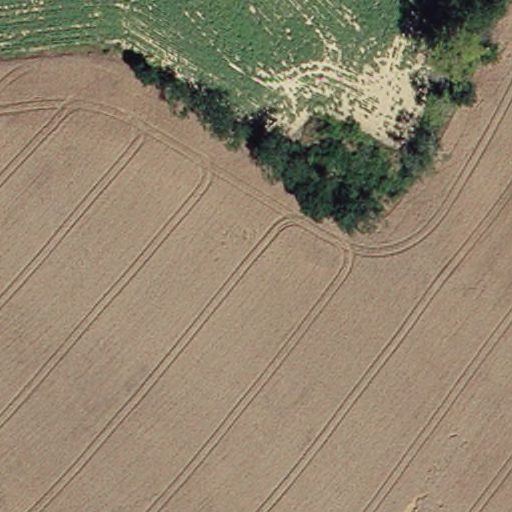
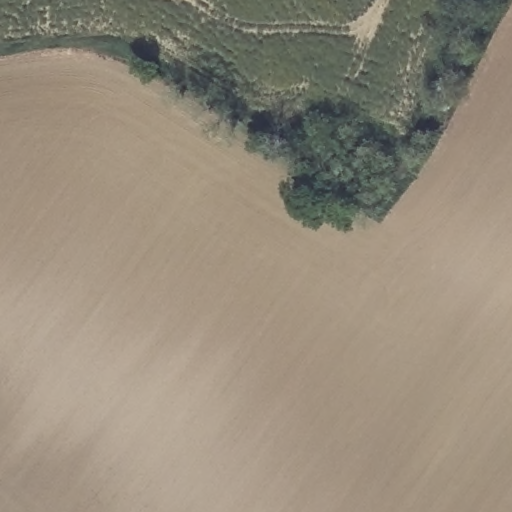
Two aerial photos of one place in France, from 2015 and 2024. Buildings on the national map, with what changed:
[]

